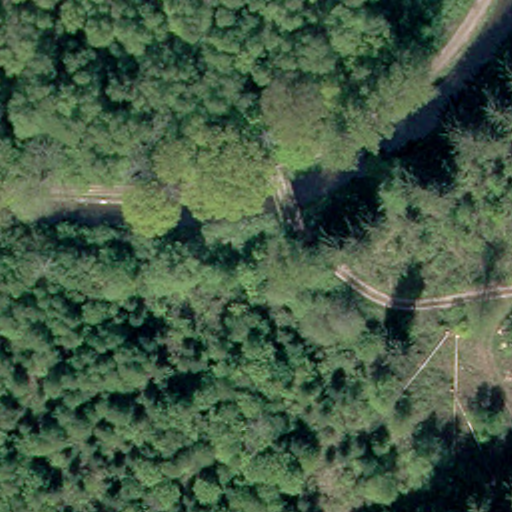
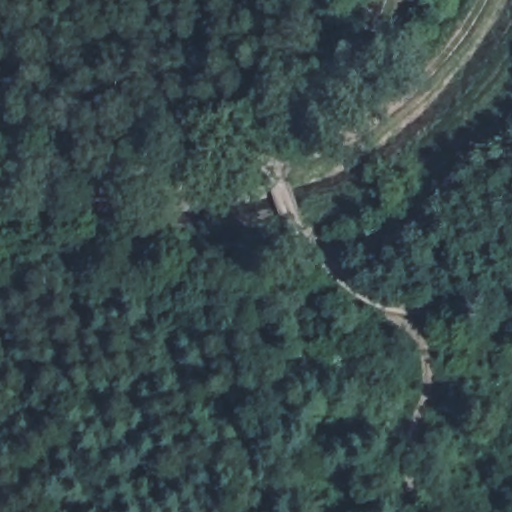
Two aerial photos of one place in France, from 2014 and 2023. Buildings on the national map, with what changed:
[]

